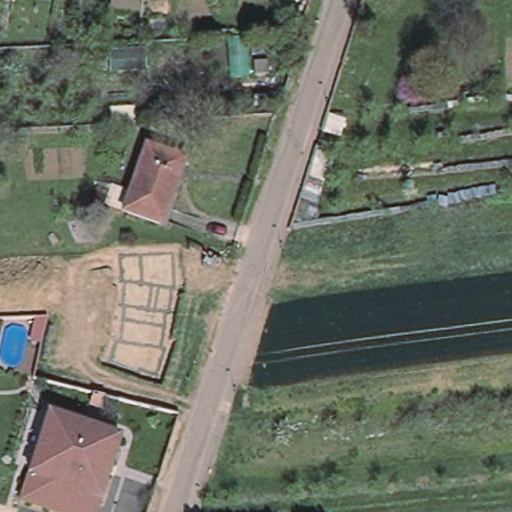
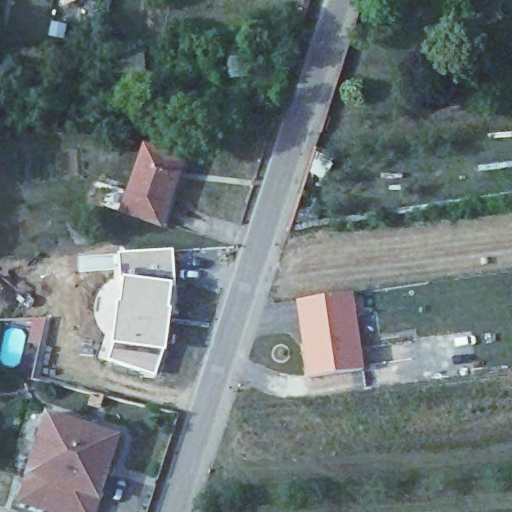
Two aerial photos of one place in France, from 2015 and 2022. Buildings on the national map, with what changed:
unchanged [(108,48),(146,45),(147,72),(111,75),(108,48)]
unchanged [(184,157),(162,220),(123,207),(147,142),(184,157)]
new [(142,363),(110,353),(115,338),(120,297),(120,296),(122,296),(125,273),(122,272),(120,246),(175,243),(177,280),(175,279),(172,302),(174,302),(173,303),(168,345),(165,344),(158,366),(157,369),(142,363)]
new [(364,367),(309,375),(305,341),(301,317),(298,298),(353,291),(364,367)]
unchanged [(49,415),(120,437),(106,481),(34,462),(49,415)]
unchanged [(96,512),(55,512),(22,502),(34,462),(106,481),(96,512)]

